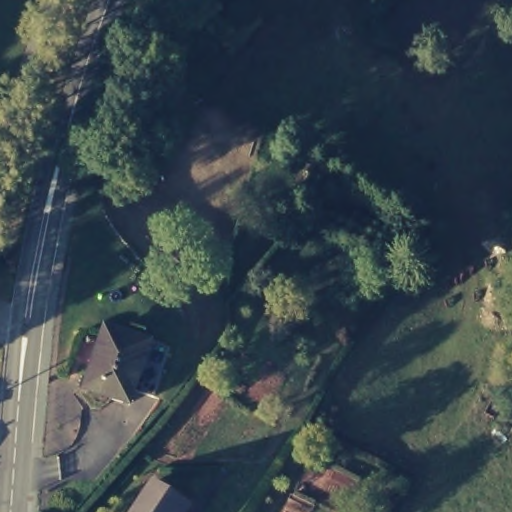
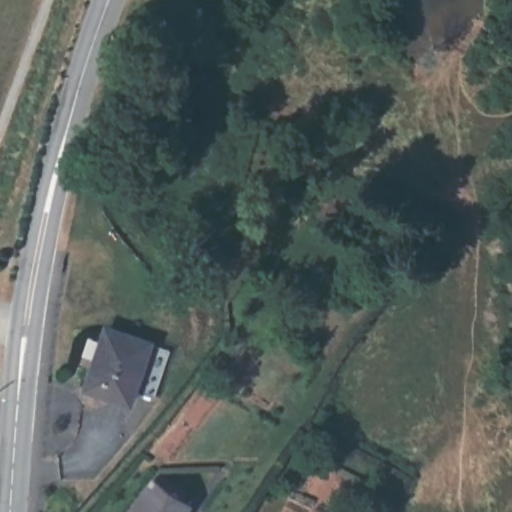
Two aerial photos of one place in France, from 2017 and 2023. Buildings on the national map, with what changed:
unchanged [(100,354),(109,327),(116,329),(154,342),(132,402),(90,387),(100,354)]
unchanged [(151,482),(188,506),(184,512),(131,512),(151,482)]

